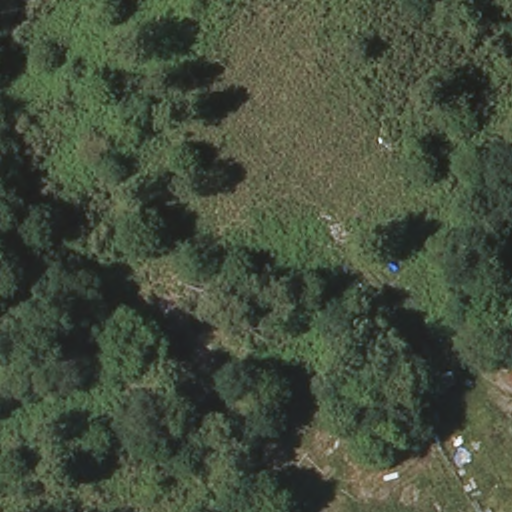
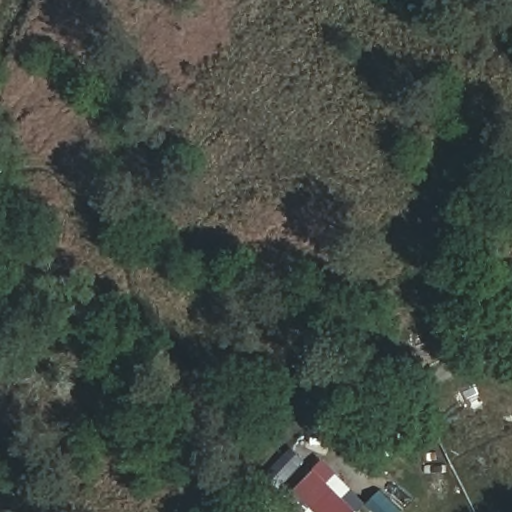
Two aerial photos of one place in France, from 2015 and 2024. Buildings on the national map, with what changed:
demolished [(334,497),(313,465),(342,445),(363,476),(334,497)]
new [(316,468),(357,511),(356,512),(318,512),(295,489),(316,468)]

